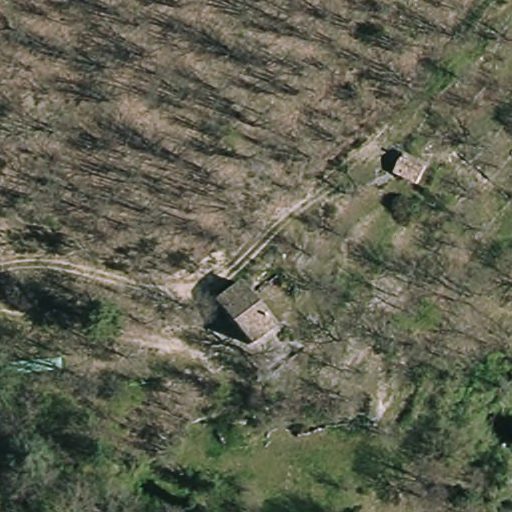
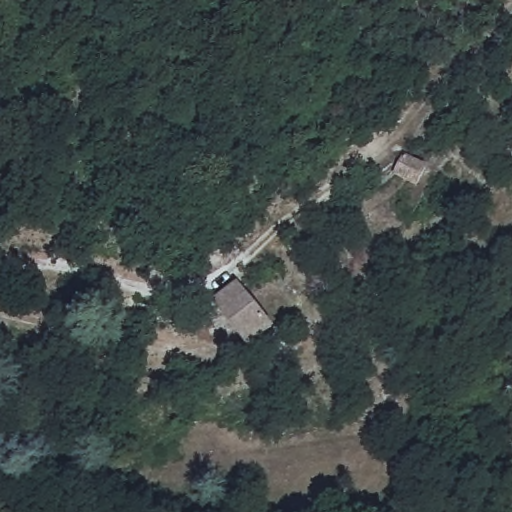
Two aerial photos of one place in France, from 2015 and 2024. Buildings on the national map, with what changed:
unchanged [(426,171),(416,186),(396,173),(406,158),(426,171)]
unchanged [(214,301),(239,281),(274,328),(251,347),(214,301)]

